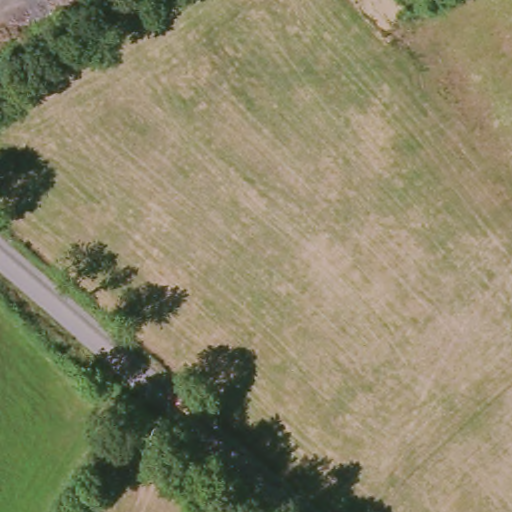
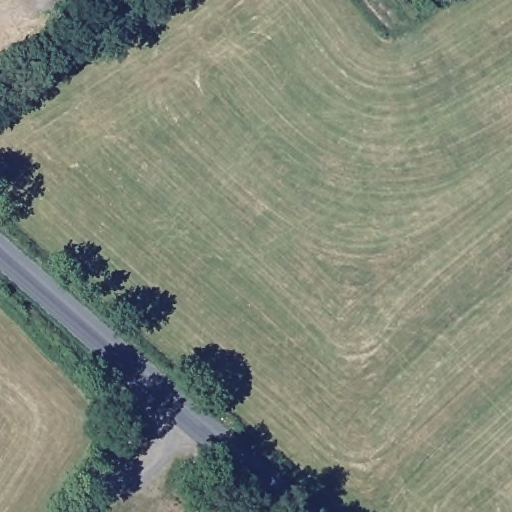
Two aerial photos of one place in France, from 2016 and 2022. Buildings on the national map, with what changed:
[]

